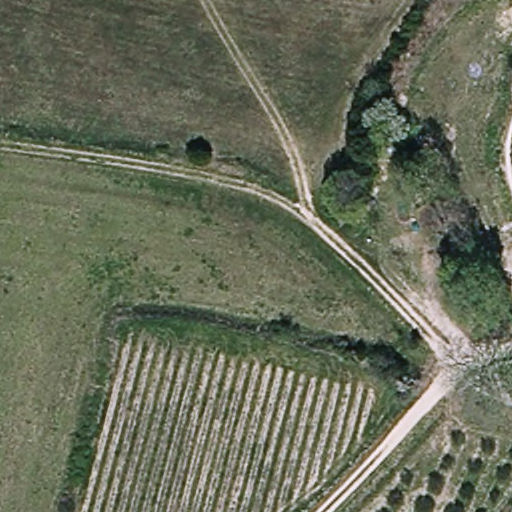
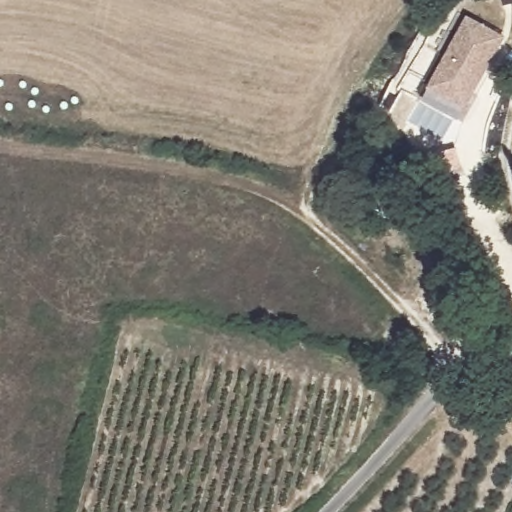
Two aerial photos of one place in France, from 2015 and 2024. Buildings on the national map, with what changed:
new [(468,17),(505,36),(467,110),(428,90),(468,17)]

